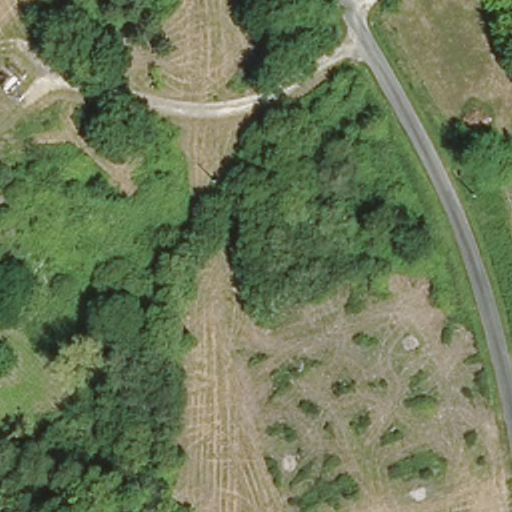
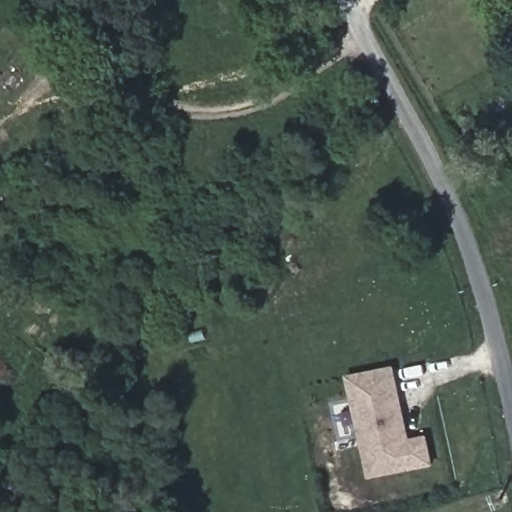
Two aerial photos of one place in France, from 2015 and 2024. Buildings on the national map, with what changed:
new [(434,466),(369,478),(349,375),(396,366),(411,438),(428,435),(434,466)]

